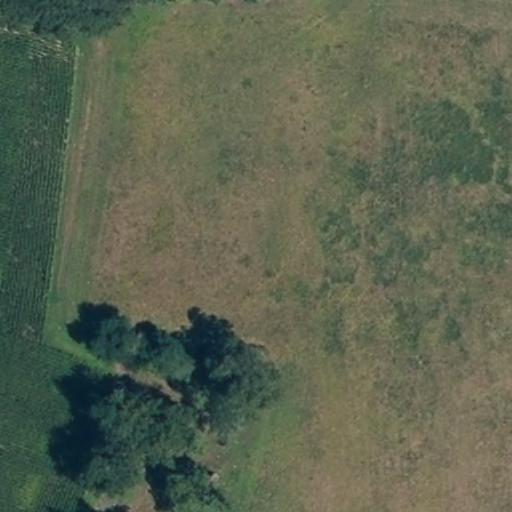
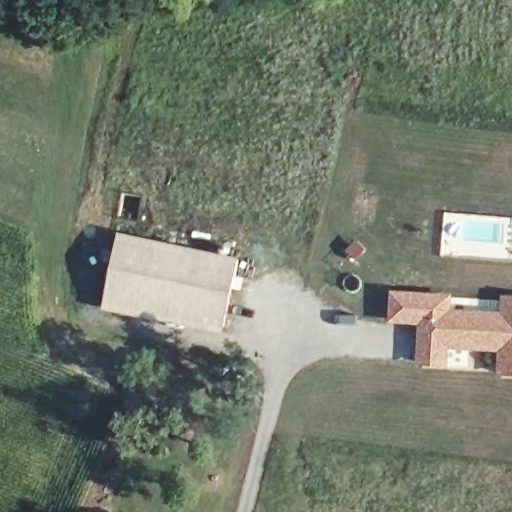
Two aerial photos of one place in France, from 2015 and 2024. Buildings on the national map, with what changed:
new [(118,260),(234,285),(221,348),(105,322),(118,260)]
new [(450,350),(448,369),(417,366),(418,326),(390,325),(392,292),(453,295),(453,310),(501,313),(502,297),(512,297),(512,378),(498,377),(498,352),(450,350)]

